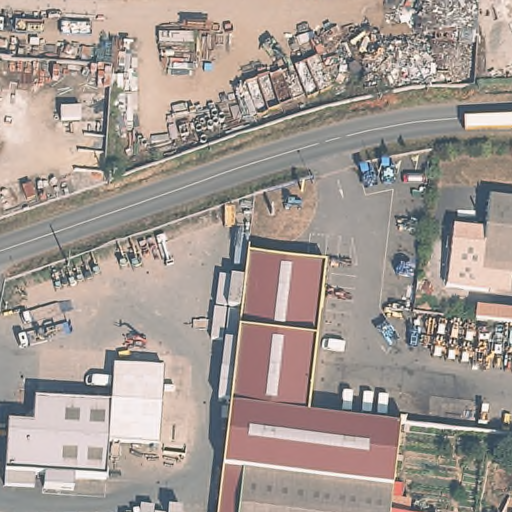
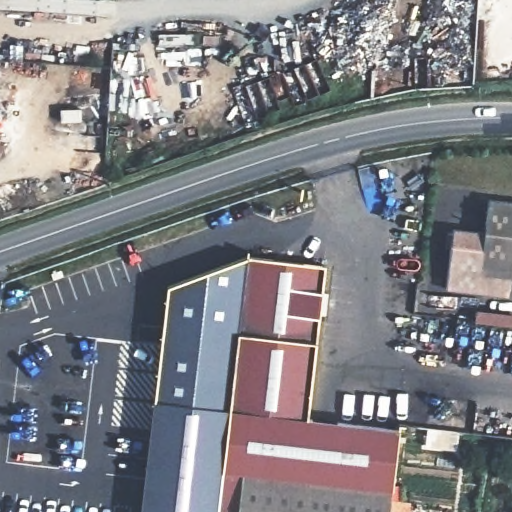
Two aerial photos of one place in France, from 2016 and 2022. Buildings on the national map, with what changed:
demolished [(106,113),(57,113),(59,92),(82,94),(84,89),(108,89),(106,113)]
unchanged [(480,264),(488,205),(512,209),(512,274),(479,270),(480,264)]
unchanged [(480,264),(479,270),(512,274),(512,287),(511,295),(448,289),(455,228),(485,232),(480,264)]
new [(230,394),(230,398),(228,409),(219,479),(215,512),(140,512),(154,399),(167,284),(248,256),(230,394)]
unchanged [(294,261),(327,264),(322,300),(320,307),(318,322),(303,416),(394,425),(387,492),(387,497),(385,512),(215,512),(219,479),(228,409),(230,398),(230,394),(248,256),(294,261)]
demolished [(17,421),(33,409),(33,399),(109,406),(112,382),(115,366),(163,372),(163,387),(156,449),(109,443),(106,461),(4,449),(7,422),(17,421)]
demolished [(106,461),(103,484),(101,484),(3,473),(4,449),(106,461)]

